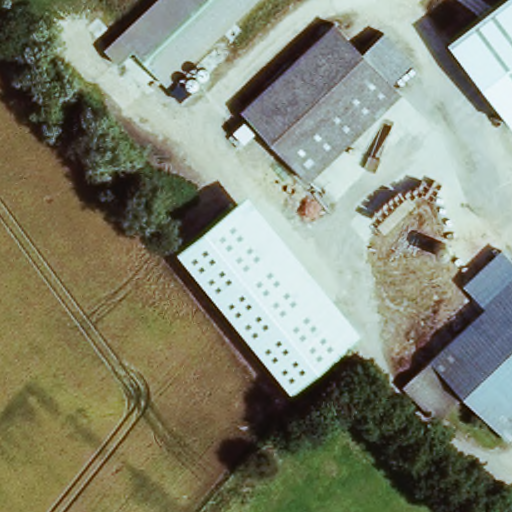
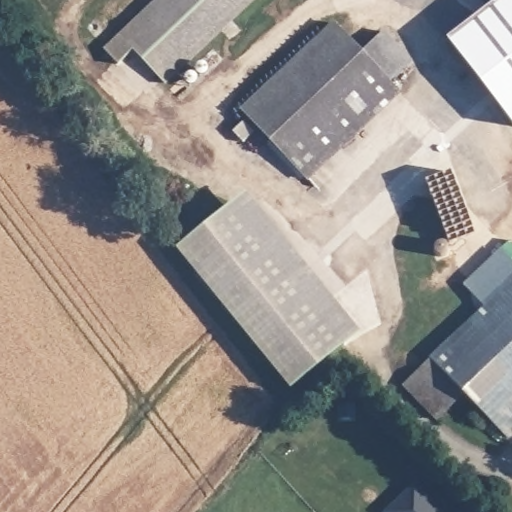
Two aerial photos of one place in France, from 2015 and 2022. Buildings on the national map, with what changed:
unchanged [(135,47),(118,61),(105,49),(155,0),(255,0),(169,81),(135,47)]
unchanged [(512,127),(447,41),(500,0),(512,0),(512,127)]
unchanged [(360,46),(266,129),(240,99),(334,16),(360,46)]
unchanged [(384,32),(412,66),(392,83),(372,60),(364,50),(384,32)]
unchanged [(392,83),(298,166),(266,129),(360,46),(392,83)]
unchanged [(360,332),(290,391),(178,251),(247,195),(360,332)]
unchanged [(502,244),(512,254),(512,433),(510,434),(467,389),(439,414),(405,379),(481,306),(477,299),(472,285),(467,279),(502,244)]
new [(387,512),(416,483),(444,512),(387,512)]

